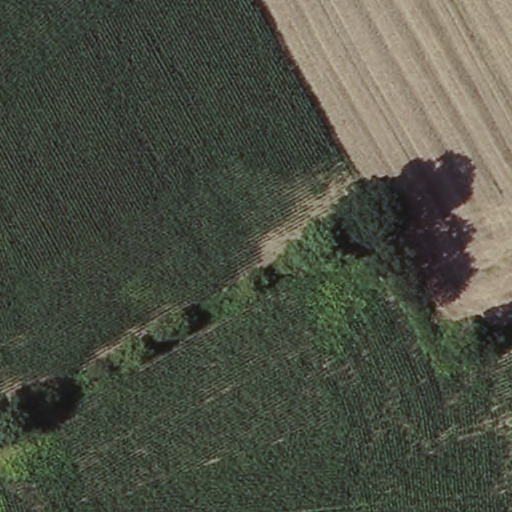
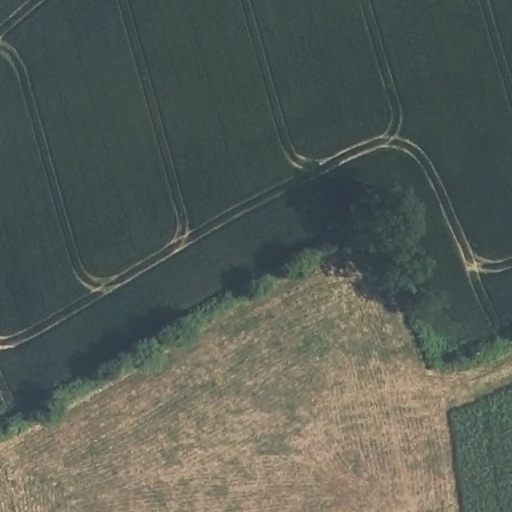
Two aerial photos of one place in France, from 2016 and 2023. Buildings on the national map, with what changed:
[]

